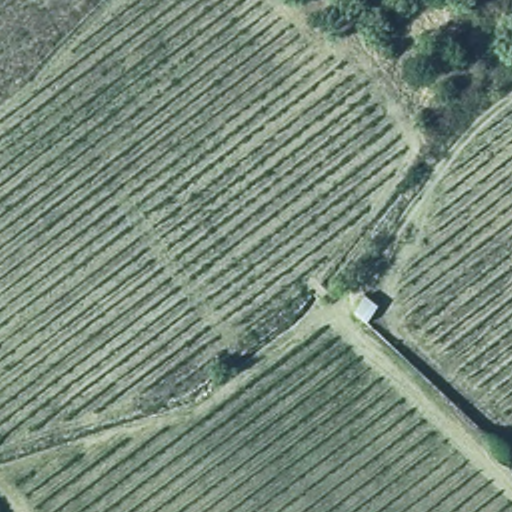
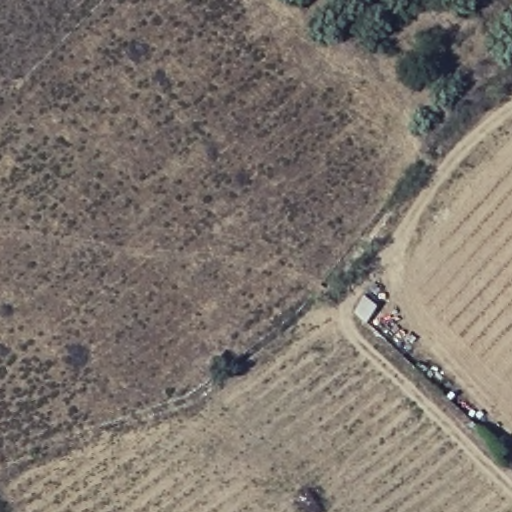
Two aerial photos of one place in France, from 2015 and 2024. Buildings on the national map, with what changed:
unchanged [(379,301),(365,317),(355,312),(363,292),(379,301)]
unchanged [(363,345),(350,357),(340,344),(352,332),(363,345)]

